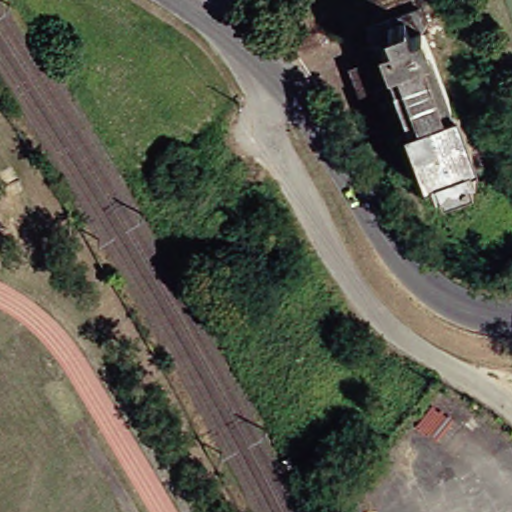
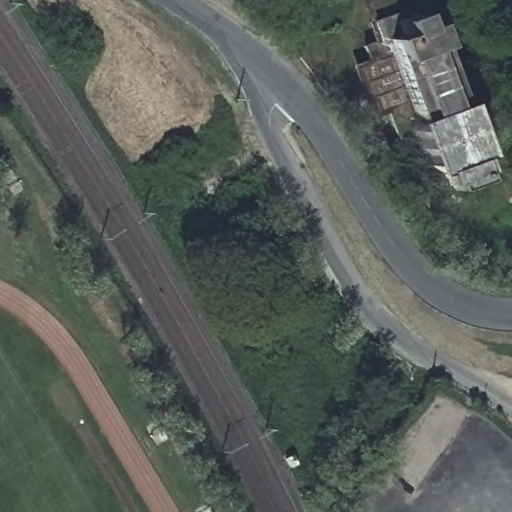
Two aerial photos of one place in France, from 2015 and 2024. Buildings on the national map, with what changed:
unchanged [(364,25),(355,0),(416,0),(417,4),(364,25)]
unchanged [(424,24),(421,26),(450,107),(457,114),(455,124),(464,130),(462,143),(471,152),(468,162),(474,178),(436,193),(429,174),(420,167),(422,154),(413,148),(416,137),(409,133),(395,139),(386,114),(364,58),(360,47),(370,43),(364,25),(417,4),(424,24)]
unchanged [(386,114),(368,121),(347,65),(364,58),(386,114)]

